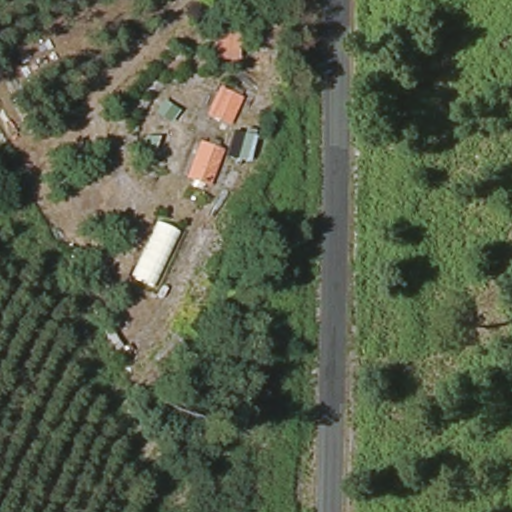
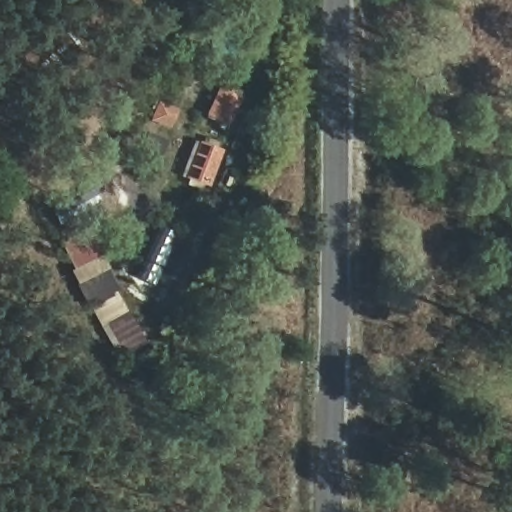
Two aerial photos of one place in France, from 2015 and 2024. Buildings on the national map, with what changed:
unchanged [(232,130),(254,134),(247,165),(224,159),(212,188),(188,180),(202,140),(226,150),(232,130)]
unchanged [(157,288),(135,277),(159,223),(182,234),(157,288)]
new [(143,343),(119,355),(61,244),(85,235),(143,343)]

